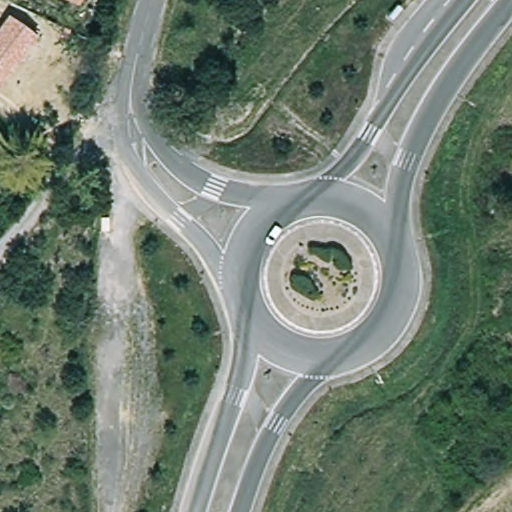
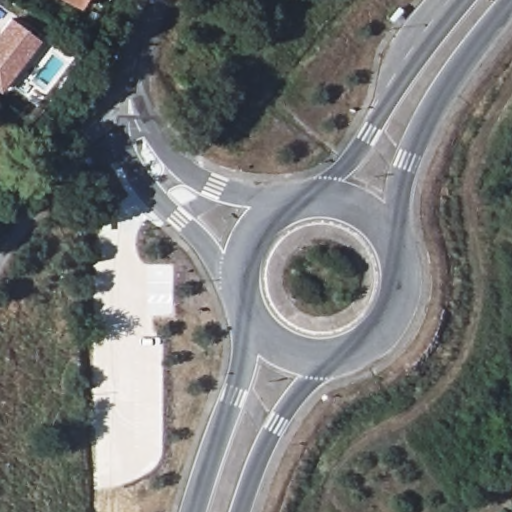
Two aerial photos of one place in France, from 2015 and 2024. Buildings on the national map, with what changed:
unchanged [(93,22),(53,0),(101,0),(93,22)]
unchanged [(0,85),(0,28),(8,19),(38,40),(0,85)]

